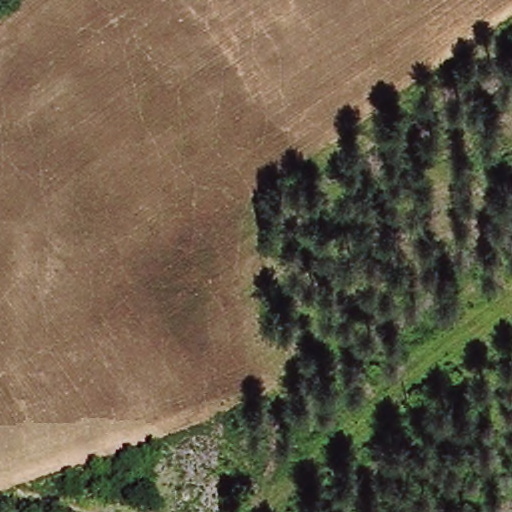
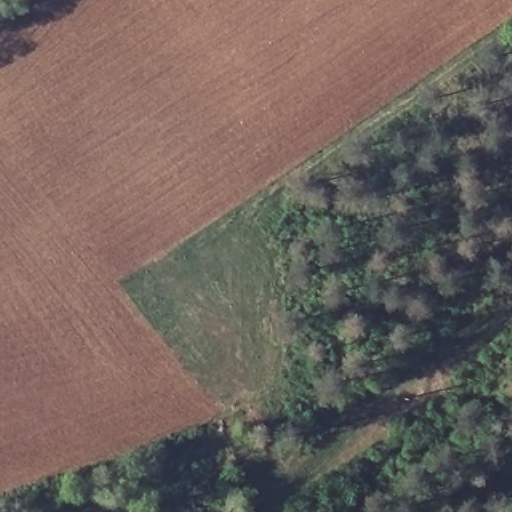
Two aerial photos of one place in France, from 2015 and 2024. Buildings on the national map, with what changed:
[]

